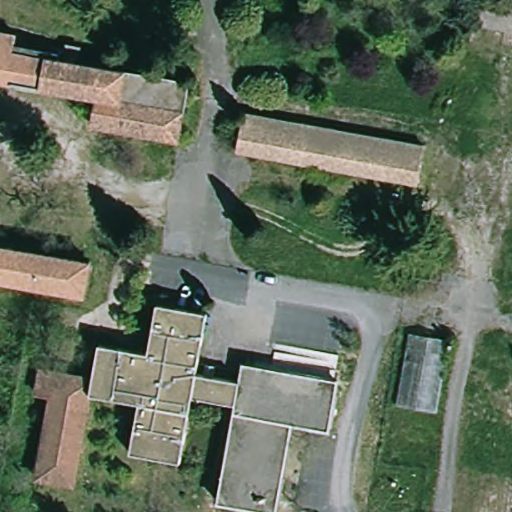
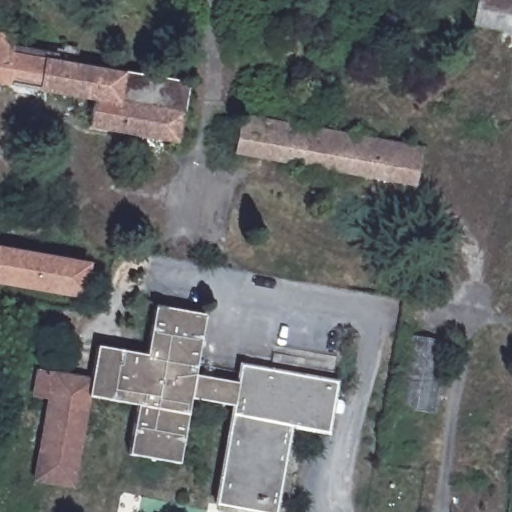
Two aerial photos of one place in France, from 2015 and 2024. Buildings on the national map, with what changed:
unchanged [(470,24),(473,0),(512,0),(512,31),(470,24)]
unchanged [(11,47),(52,55),(53,47),(72,51),(73,47),(95,51),(92,66),(187,85),(175,141),(91,124),(96,101),(0,82),(0,31),(14,34),(11,47)]
unchanged [(353,141),(349,171),(234,152),(241,115),(354,133),(353,141)]
unchanged [(419,183),(349,171),(353,141),(354,133),(425,145),(419,183)]
unchanged [(0,285),(0,248),(92,263),(86,299),(0,285)]
unchanged [(234,408),(190,401),(180,463),(129,455),(137,406),(107,401),(88,398),(73,488),(39,482),(52,399),(36,396),(40,373),(91,381),(97,347),(118,351),(146,355),(154,306),(205,314),(194,375),(238,382),(241,364),(335,380),(327,429),(290,423),(275,512),(263,512),(218,504),(234,408)]
unchanged [(410,332),(448,339),(435,412),(398,406),(410,332)]

